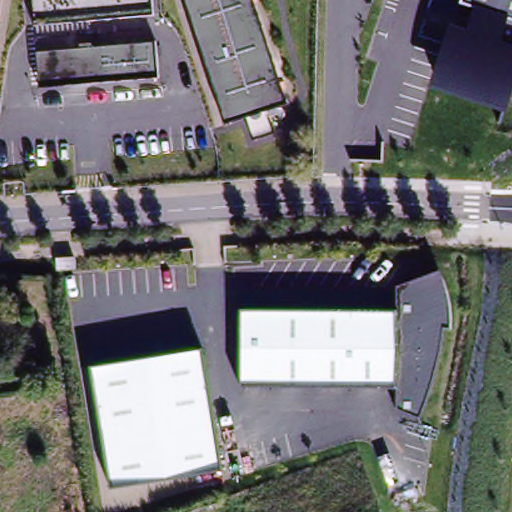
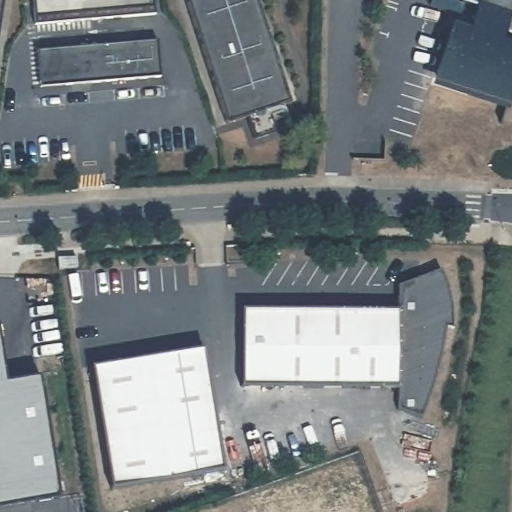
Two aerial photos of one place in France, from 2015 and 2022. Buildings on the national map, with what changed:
unchanged [(0,16),(0,0),(2,0),(0,16)]
unchanged [(153,15),(34,25),(32,0),(151,0),(153,15)]
unchanged [(289,104),(227,125),(186,0),(254,0),(289,104)]
unchanged [(512,97),(509,109),(432,84),(451,26),(468,31),(476,10),(460,4),(461,0),(512,0),(512,97)]
unchanged [(160,80),(41,90),(39,53),(157,42),(160,80)]
unchanged [(395,311),(396,286),(439,270),(445,285),(451,303),(453,330),(442,330),(436,368),(419,420),(397,414),(398,385),(242,384),(243,310),(395,311)]
unchanged [(203,350),(222,467),(110,489),(90,368),(203,350)]
new [(3,383),(37,378),(55,496),(0,506),(0,365),(3,383)]

